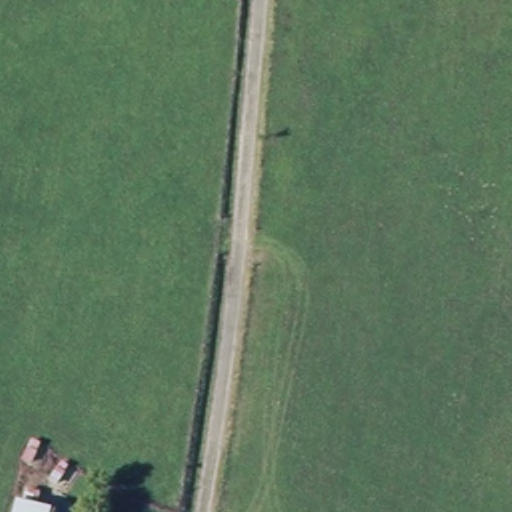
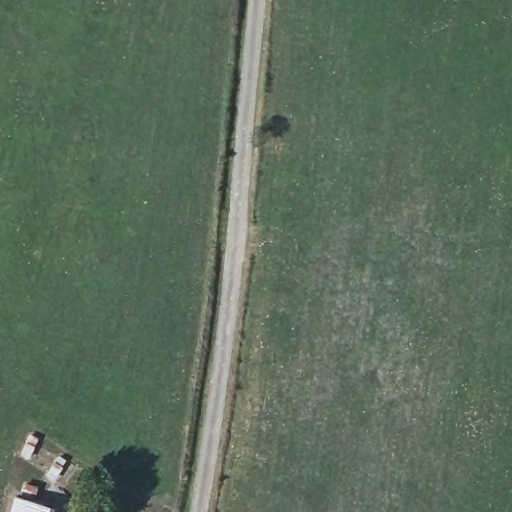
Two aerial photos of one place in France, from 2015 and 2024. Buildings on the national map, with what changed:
unchanged [(45,510),(45,512),(14,512),(16,502),(45,510)]

